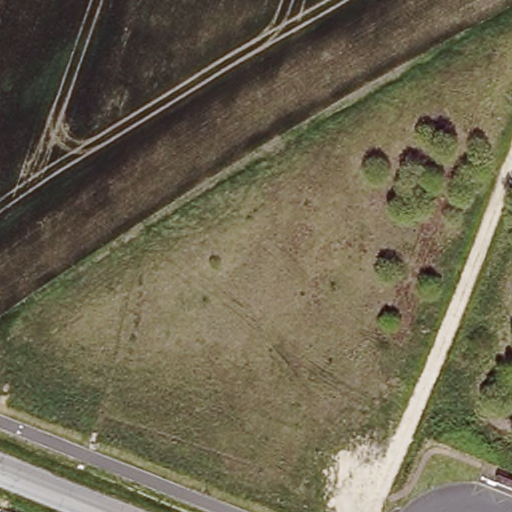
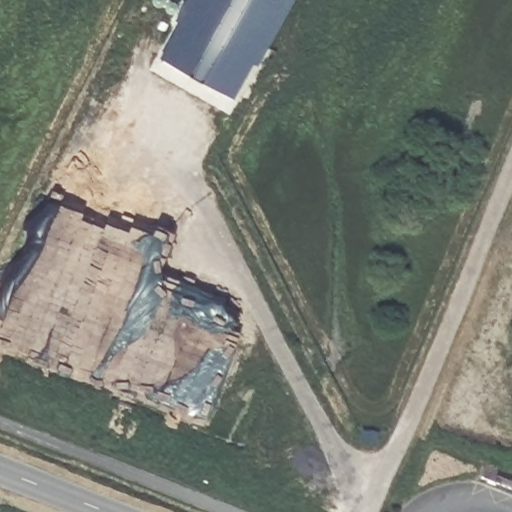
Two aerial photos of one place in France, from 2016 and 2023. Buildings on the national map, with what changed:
new [(253,63),(235,97),(160,57),(180,21),(176,19),(186,0),(296,0),(260,66),(253,63)]

